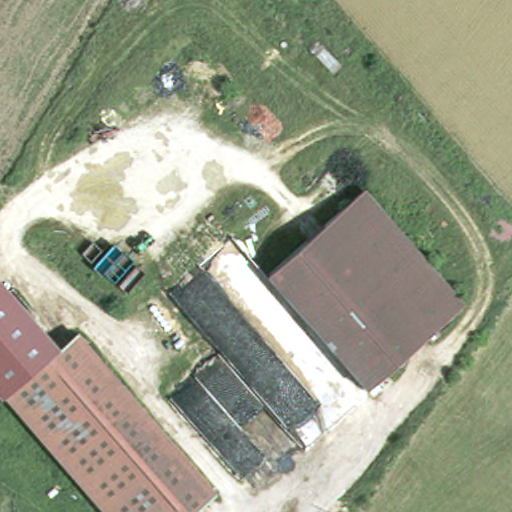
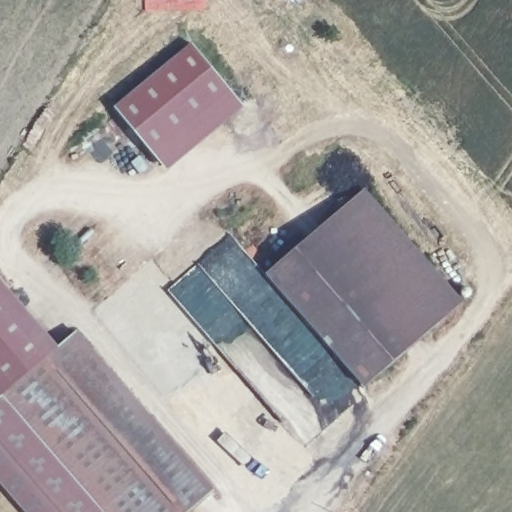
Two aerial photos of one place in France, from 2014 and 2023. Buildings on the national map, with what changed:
new [(188,40),(240,104),(162,166),(111,104),(188,40)]
unchanged [(273,274),(367,192),(465,307),(370,389),(273,274)]
unchanged [(0,396),(0,285),(56,350),(2,393),(0,396)]
unchanged [(84,329),(220,487),(191,512),(106,512),(2,393),(84,329)]
new [(0,396),(2,393),(106,512),(25,512),(0,482),(0,396)]

